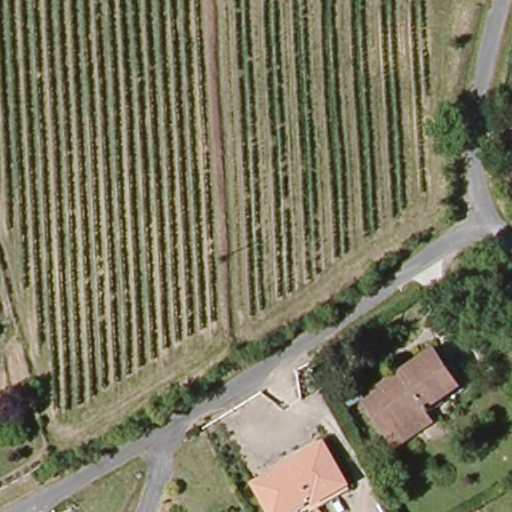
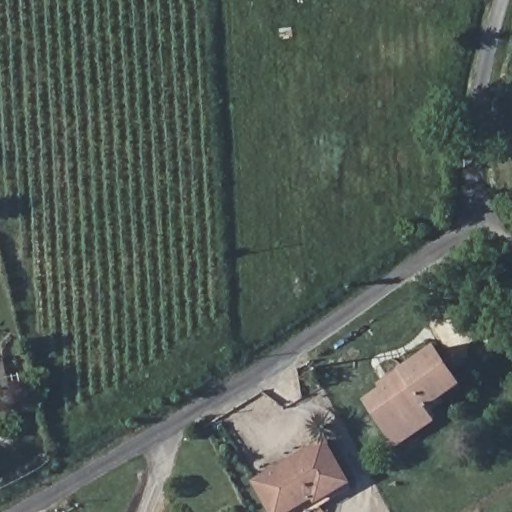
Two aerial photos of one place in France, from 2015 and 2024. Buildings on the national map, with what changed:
unchanged [(397,451),(391,443),(369,408),(384,397),(382,392),(404,377),(433,357),(457,391),(429,411),(437,424),(397,451)]
unchanged [(322,439),(347,480),(351,486),(306,512),(271,512),(253,481),(322,439)]

